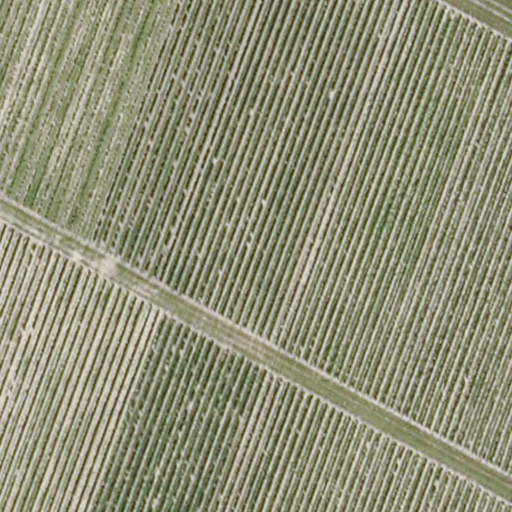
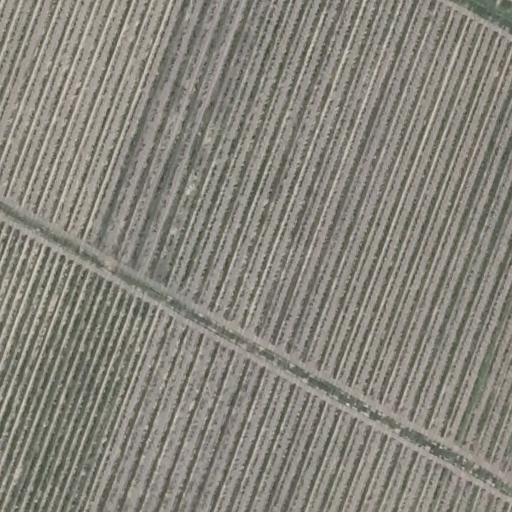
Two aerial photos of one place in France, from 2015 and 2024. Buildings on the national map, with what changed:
[]

